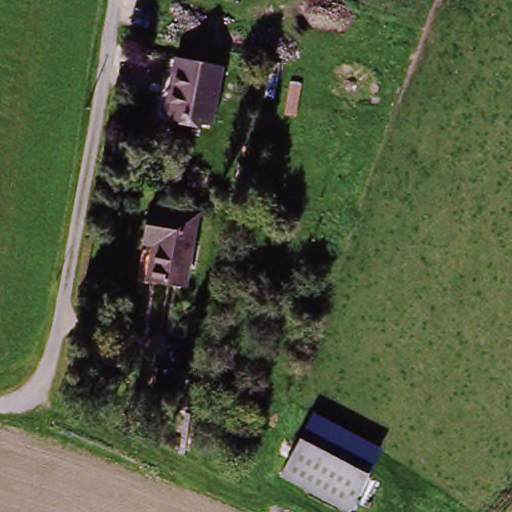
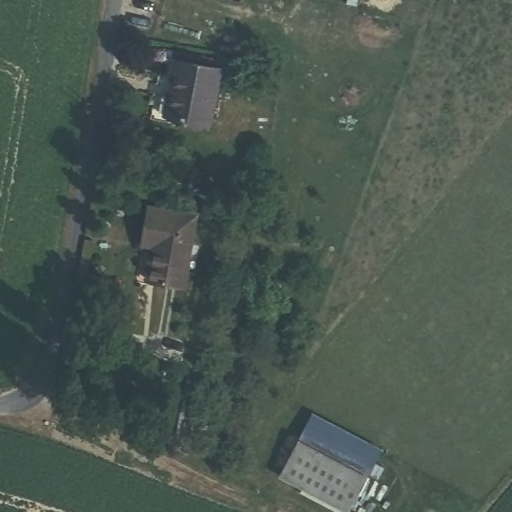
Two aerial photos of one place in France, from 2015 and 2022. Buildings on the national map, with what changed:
unchanged [(166,84),(170,64),(216,73),(207,128),(167,120),(160,119),(166,84)]
unchanged [(150,279),(156,244),(142,240),(149,208),(195,217),(181,285),(150,279)]
unchanged [(369,474),(350,512),(281,478),(300,436),(369,474)]

